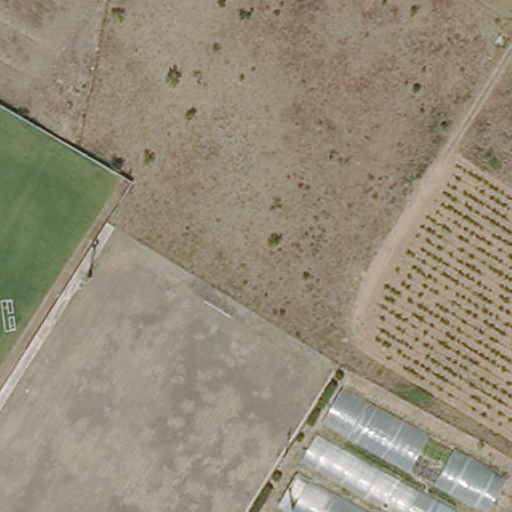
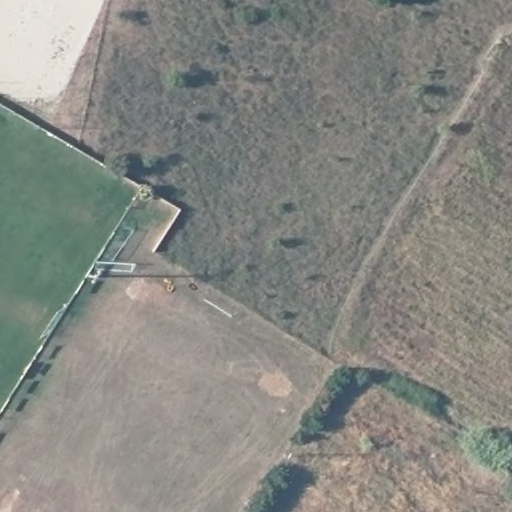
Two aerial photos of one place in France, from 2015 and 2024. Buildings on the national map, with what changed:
demolished [(483,466),(459,511),(461,512),(387,512),(298,466),(315,434),(343,450),(370,403),(483,466)]

